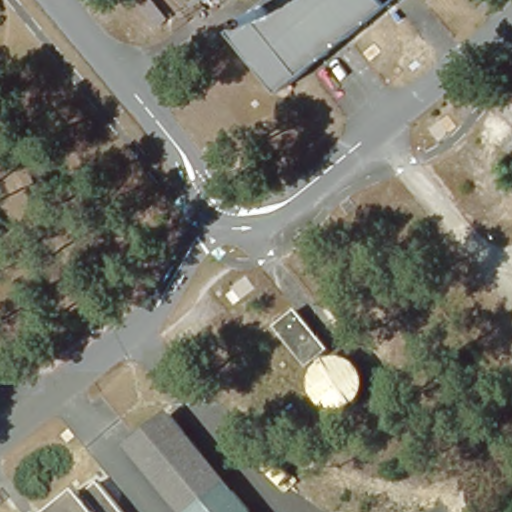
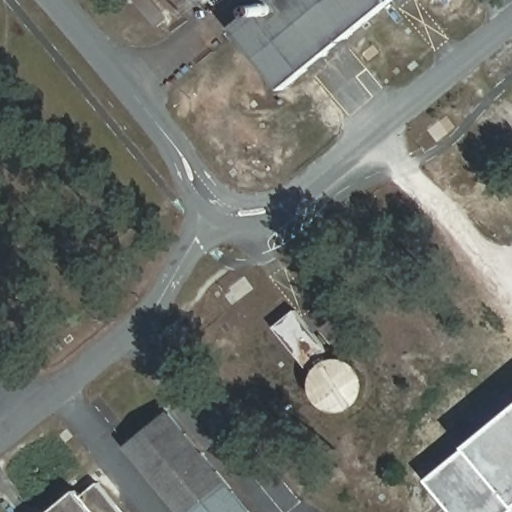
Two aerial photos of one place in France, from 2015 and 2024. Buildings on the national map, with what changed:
unchanged [(370,0),(385,18),(310,74),(259,7),(269,0),(370,0)]
unchanged [(310,74),(286,92),(235,25),(259,7),(310,74)]
unchanged [(276,330),(300,312),(331,351),(309,368),(276,330)]
new [(426,480),(512,412),(512,512),(453,512),(426,480)]
unchanged [(128,450),(173,414),(254,512),(179,512),(128,450)]
unchanged [(79,492),(83,497),(99,485),(122,512),(55,512),(79,492)]

